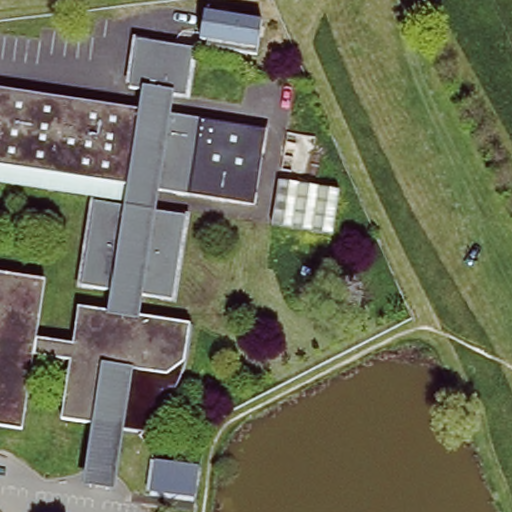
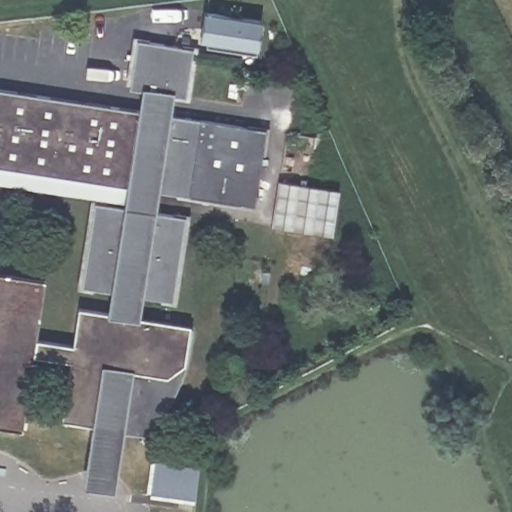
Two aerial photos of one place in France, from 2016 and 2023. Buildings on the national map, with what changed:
unchanged [(202,35),(195,34),(200,5),(257,12),(252,47),(202,41),(202,35)]
unchanged [(94,487),(100,443),(102,425),(62,420),(72,362),(33,358),(23,430),(0,427),(0,276),(44,282),(36,340),(72,345),(78,309),(115,315),(118,293),(82,288),(95,203),(130,209),(132,187),(71,180),(0,171),(0,93),(140,110),(142,91),(124,89),(130,40),(187,47),(181,96),(162,94),(160,114),(262,126),(252,203),(187,195),(151,191),(149,211),(184,215),(173,300),(138,296),(135,317),(192,325),(188,352),(179,387),(161,419),(157,426),(147,434),(120,430),(119,445),(112,490),(94,487)]
unchanged [(71,180),(69,192),(0,183),(0,171),(71,180)]
unchanged [(340,190),(335,234),(272,223),(278,179),(340,190)]
unchanged [(200,465),(197,502),(146,495),(150,460),(200,465)]

